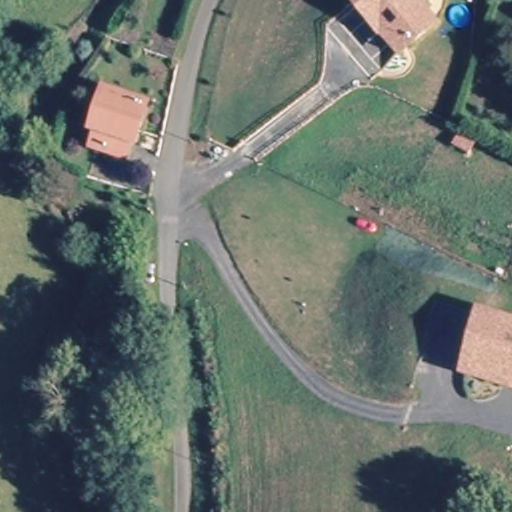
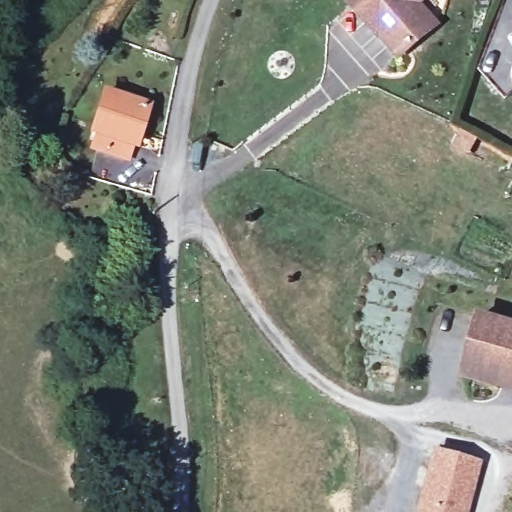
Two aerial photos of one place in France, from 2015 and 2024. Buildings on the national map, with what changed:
unchanged [(357,6),(364,0),(427,0),(422,4),(440,25),(404,58),(357,6)]
unchanged [(131,142),(126,161),(94,154),(98,136),(91,135),(100,95),(146,105),(143,121),(135,119),(131,142)]
unchanged [(462,373),(480,313),(512,322),(512,388),(485,380),(462,373)]
new [(467,512),(414,512),(430,448),(480,462),(467,512)]

